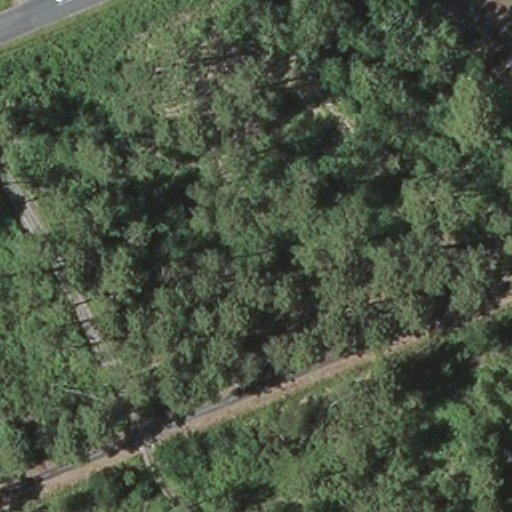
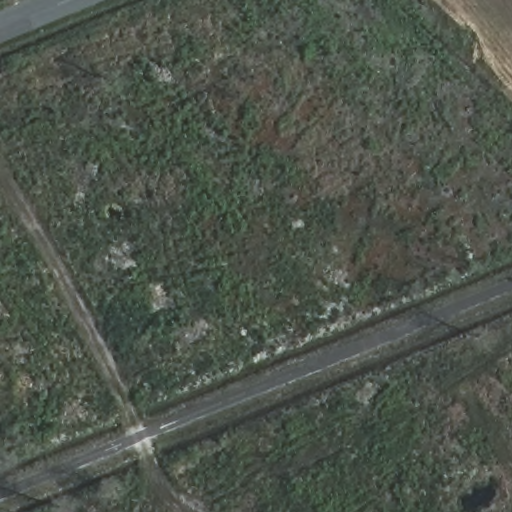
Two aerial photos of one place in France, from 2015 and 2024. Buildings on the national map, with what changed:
[]

